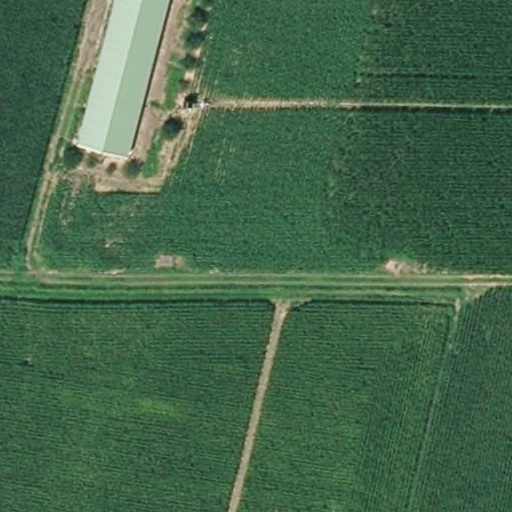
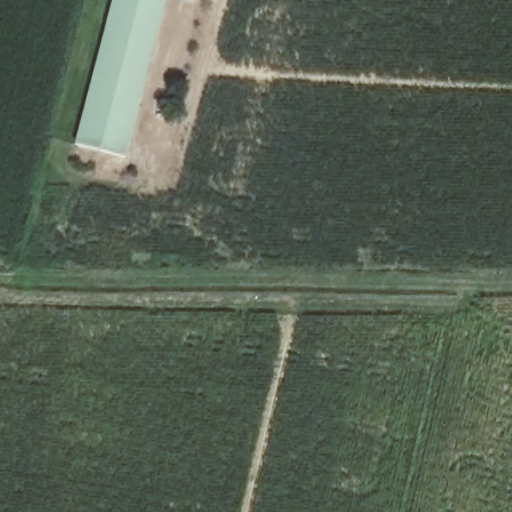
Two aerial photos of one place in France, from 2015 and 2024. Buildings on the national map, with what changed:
unchanged [(163,0),(123,156),(77,145),(114,0),(163,0)]

